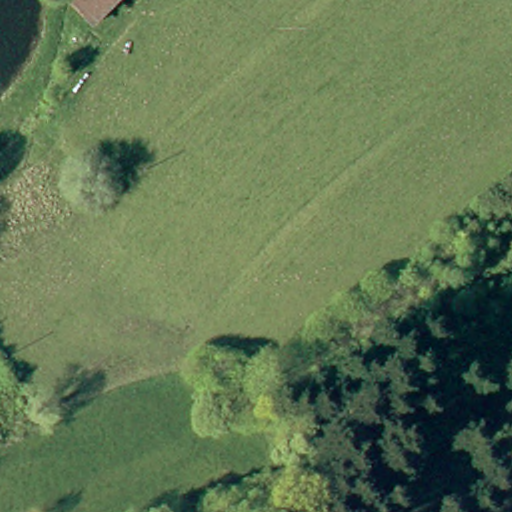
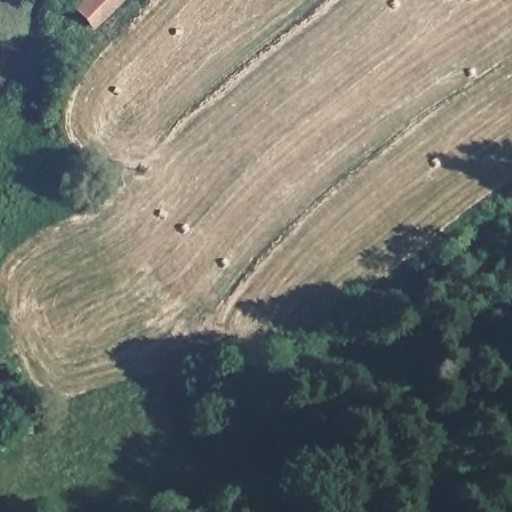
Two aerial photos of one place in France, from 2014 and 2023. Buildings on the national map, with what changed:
unchanged [(109,0),(88,18),(82,11),(70,0),(109,0)]

